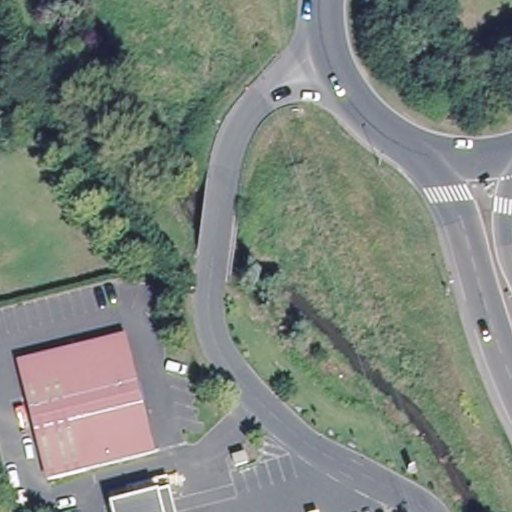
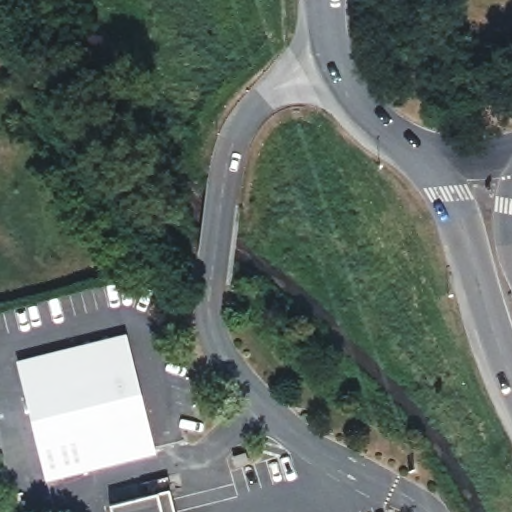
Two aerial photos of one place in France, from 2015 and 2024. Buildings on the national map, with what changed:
unchanged [(18,359),(124,334),(153,451),(47,477),(18,359)]
unchanged [(120,512),(117,500),(165,488),(172,512),(120,512)]

